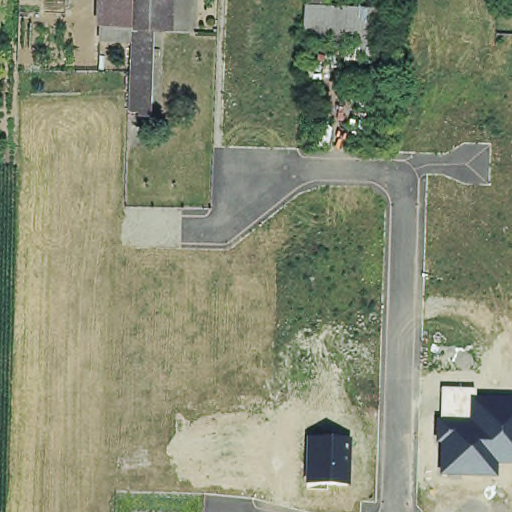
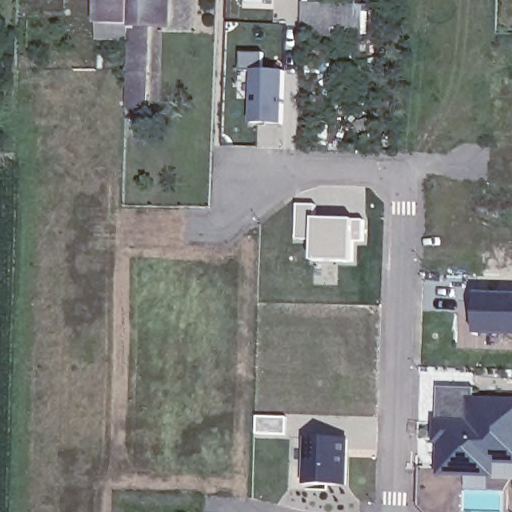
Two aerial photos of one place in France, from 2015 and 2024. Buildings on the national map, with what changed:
unchanged [(100,28),(101,0),(126,0),(125,29),(100,28)]
unchanged [(126,0),(160,0),(159,30),(146,30),(125,29),(126,0)]
unchanged [(368,8),(366,50),(337,49),(337,35),(293,33),(294,4),(368,8)]
unchanged [(135,118),(135,113),(123,113),(125,29),(146,30),(143,113),(142,119),(135,118)]
new [(253,124),(255,69),(288,71),(286,125),(253,124)]
new [(296,240),(296,202),(317,203),(316,216),(367,218),(366,243),(354,243),(354,262),(311,261),(312,241),(296,240)]
new [(512,298),(512,337),(479,335),(480,296),(512,298)]
unchanged [(497,464),(496,477),(439,475),(439,444),(435,445),(436,419),(438,419),(440,388),(475,390),(475,397),(512,399),(512,464),(497,464)]
unchanged [(349,485),(306,484),(306,437),(349,439),(349,485)]

